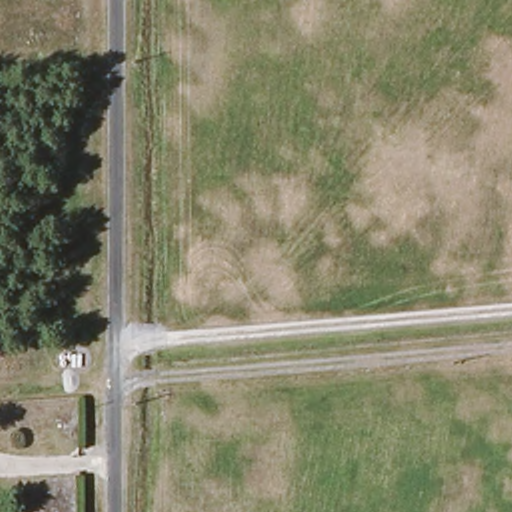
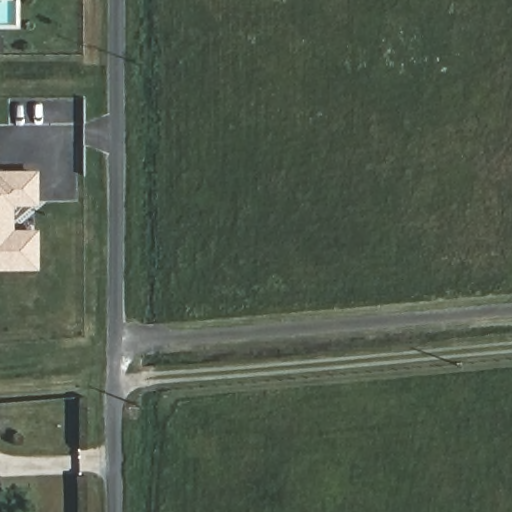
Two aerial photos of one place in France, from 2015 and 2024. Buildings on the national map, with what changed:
new [(12,205),(13,228),(35,228),(36,267),(0,268),(0,169),(37,169),(36,205),(12,205)]

